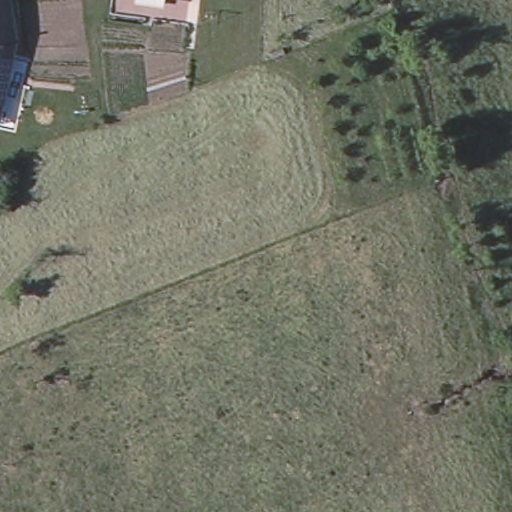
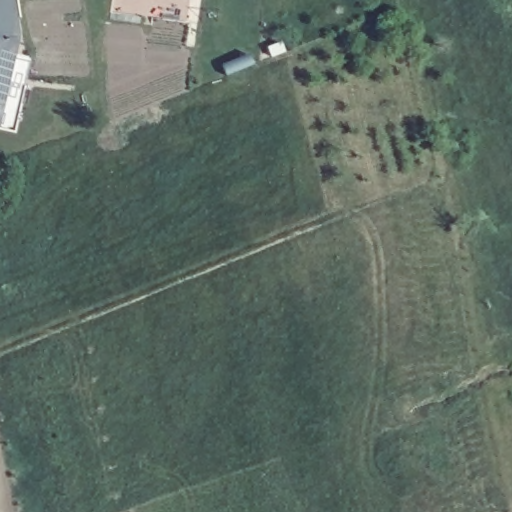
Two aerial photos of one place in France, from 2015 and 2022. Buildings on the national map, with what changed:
unchanged [(16,50),(3,99),(0,98),(0,0),(15,0),(21,33),(13,35),(16,50)]

